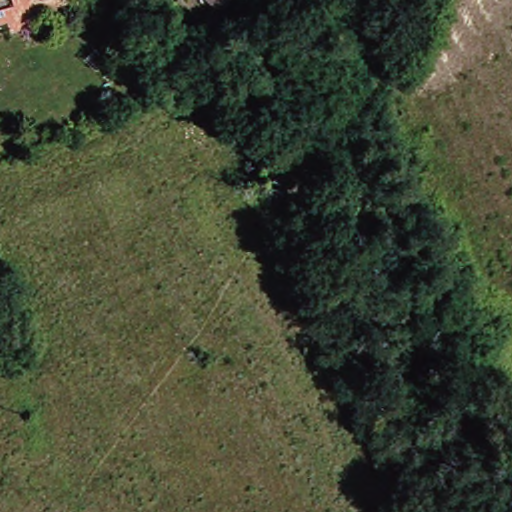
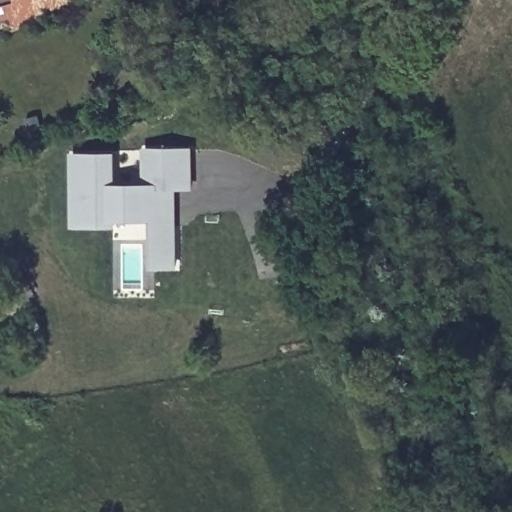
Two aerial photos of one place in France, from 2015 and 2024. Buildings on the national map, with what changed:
unchanged [(60,0),(31,9),(34,17),(21,21),(20,18),(6,22),(4,17),(0,18),(0,0),(60,0)]
unchanged [(217,5),(211,0),(220,0),(228,0),(224,5),(217,5)]
new [(70,159),(110,159),(110,190),(143,191),(143,154),(186,154),(186,186),(171,186),(170,265),(150,265),(150,217),(110,217),(110,230),(70,230),(70,159)]

